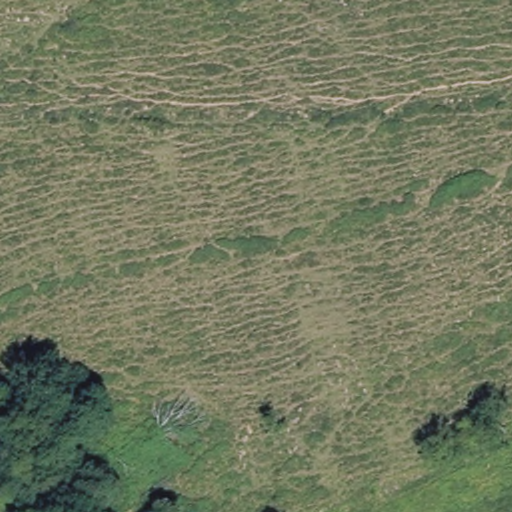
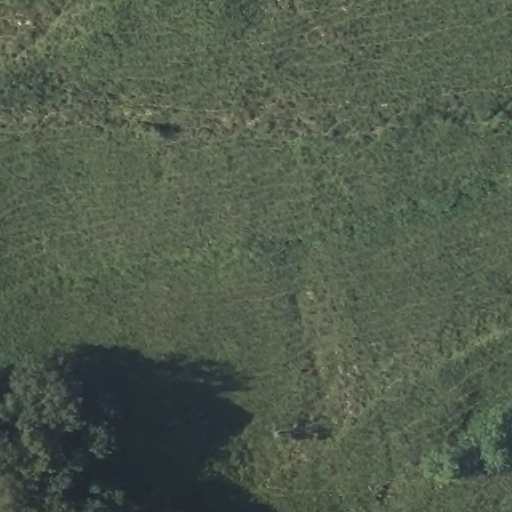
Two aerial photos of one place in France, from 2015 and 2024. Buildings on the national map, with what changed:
[]

